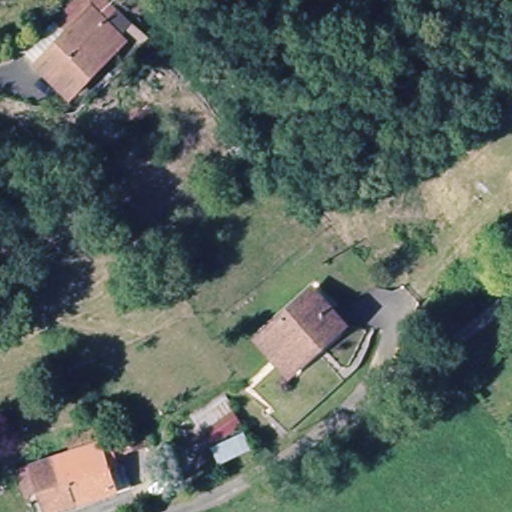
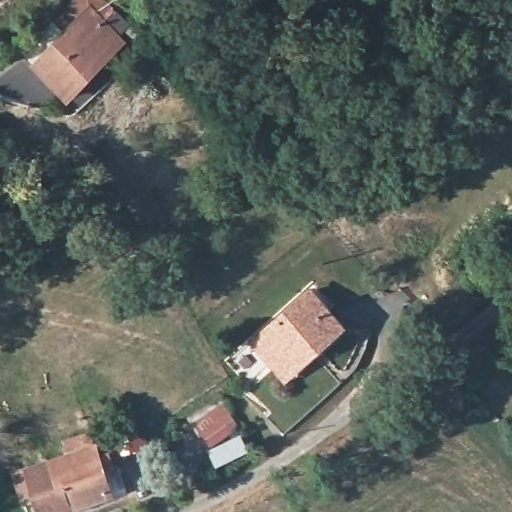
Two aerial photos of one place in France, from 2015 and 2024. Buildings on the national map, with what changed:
unchanged [(112,17),(102,27),(122,48),(65,101),(36,70),(65,42),(51,27),(71,9),(81,0),(96,0),(112,17)]
unchanged [(284,368),(256,337),(265,328),(315,283),(344,317),(347,321),(300,366),(290,375),(284,368)]
unchanged [(125,447),(130,446),(126,434),(139,431),(143,444),(149,442),(153,459),(129,466),(125,447)]
unchanged [(121,492),(84,503),(70,458),(108,447),(121,492)]
unchanged [(55,512),(51,512),(46,492),(25,497),(18,472),(39,467),(70,458),(84,503),(55,512)]

